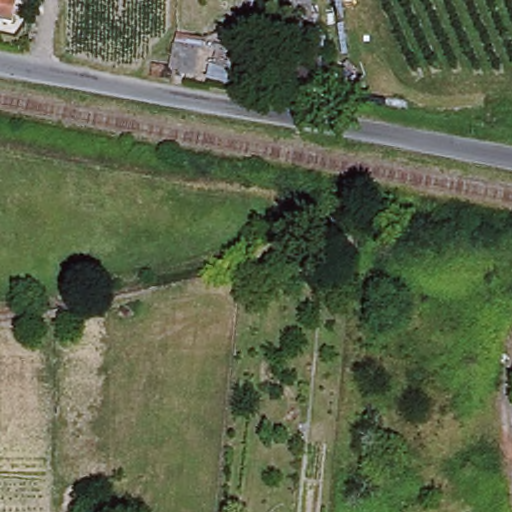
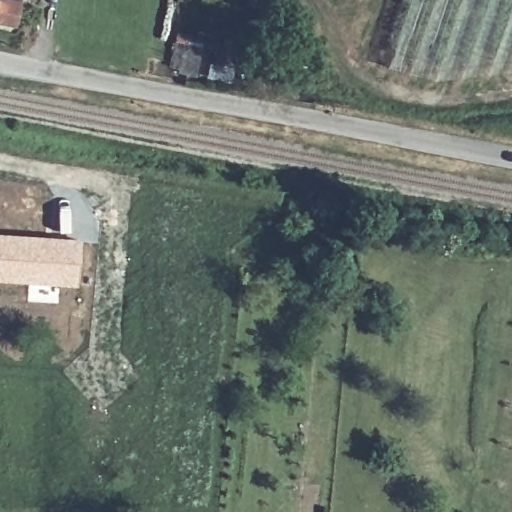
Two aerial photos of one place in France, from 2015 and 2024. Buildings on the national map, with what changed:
unchanged [(16,23),(0,21),(0,0),(21,0),(16,23)]
unchanged [(206,39),(197,77),(169,71),(175,33),(206,39)]
new [(76,285),(0,281),(0,232),(79,239),(76,285)]

